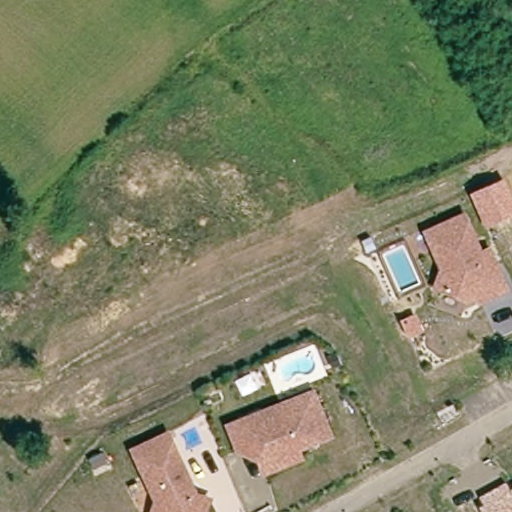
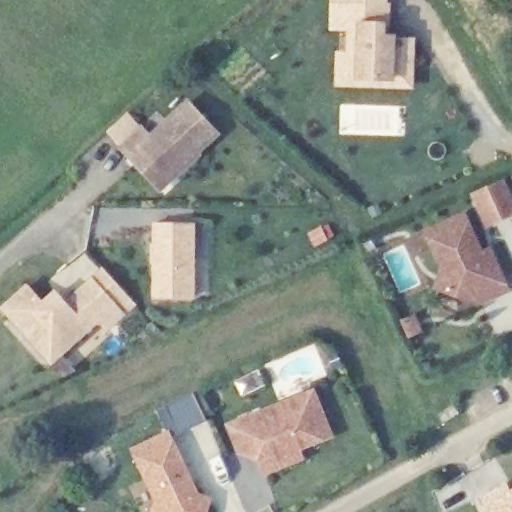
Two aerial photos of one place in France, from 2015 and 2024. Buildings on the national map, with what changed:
new [(387,23),(387,37),(382,37),(382,22),(382,6),(349,5),(349,32),(330,31),(331,0),(389,0),(389,3),(392,3),(387,23)]
new [(348,56),(349,5),(382,6),(382,37),(392,37),(392,40),(411,40),(410,76),(410,84),(338,84),(338,55),(348,56)]
new [(132,161),(121,149),(140,131),(151,142),(189,106),(218,137),(198,156),(161,191),(132,161)]
new [(507,196),(512,209),(512,218),(510,219),(484,230),(471,199),(502,186),(507,196)]
unchanged [(441,270),(426,227),(466,211),(481,249),(490,245),(508,292),(477,303),(435,288),(441,270)]
new [(196,226),(198,300),(161,301),(159,227),(196,226)]
new [(30,337),(10,315),(14,311),(32,293),(48,311),(61,299),(66,304),(71,310),(83,299),(106,323),(68,360),(59,367),(45,352),(30,337)]
unchanged [(301,447),(305,458),(263,475),(257,456),(237,452),(227,423),(316,390),(335,436),(301,447)]
unchanged [(131,451),(169,430),(200,493),(215,500),(210,512),(150,512),(154,500),(131,451)]
unchanged [(484,503),(479,495),(506,482),(511,490),(512,489),(512,512),(483,512),(480,506),(484,503)]

